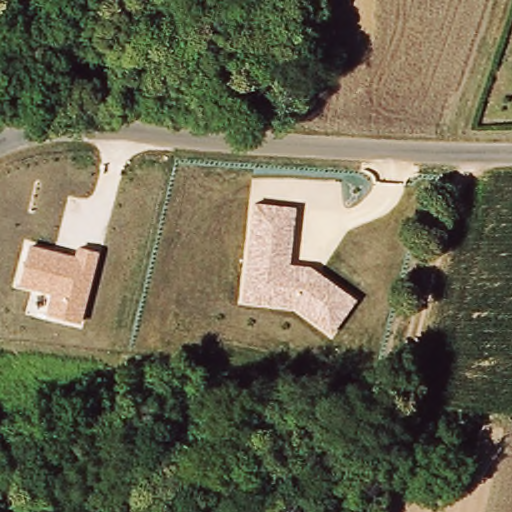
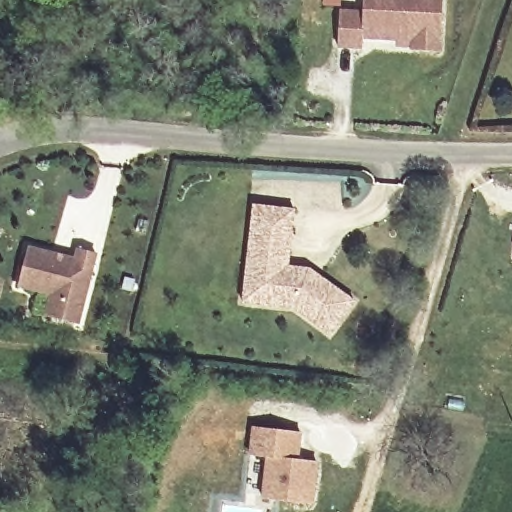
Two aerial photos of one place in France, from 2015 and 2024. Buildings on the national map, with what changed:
new [(441,50),(409,49),(409,47),(396,47),(396,41),(362,39),(360,48),(337,47),(340,10),(362,12),(363,0),(442,0),(441,50)]
unchanged [(297,209),(290,265),(312,268),(355,301),(330,335),(295,308),(242,303),(253,203),(297,209)]
unchanged [(82,326),(45,318),(50,295),(18,287),(28,245),(75,258),(76,248),(100,254),(82,326)]
new [(257,426),(303,432),(300,459),(319,462),(313,504),(265,498),(270,456),(253,454),(257,426)]

